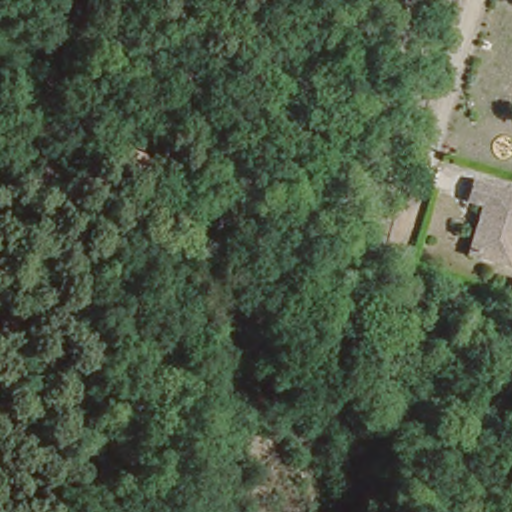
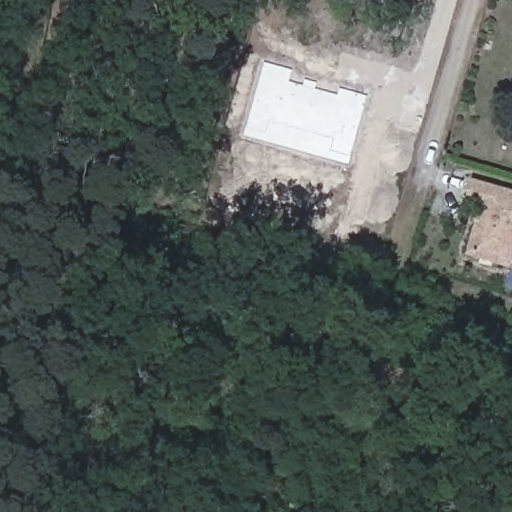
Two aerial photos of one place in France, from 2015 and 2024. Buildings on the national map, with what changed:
new [(243,135),(265,62),(292,69),(288,81),(338,95),(340,89),(367,97),(348,164),(243,135)]
unchanged [(512,189),(512,229),(504,257),(467,247),(480,199),(463,194),(468,177),(512,189)]

